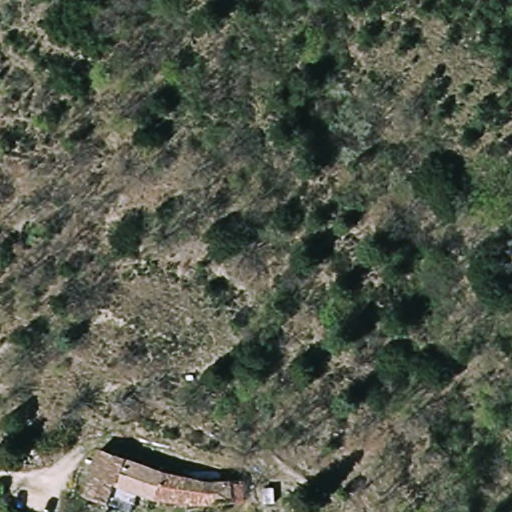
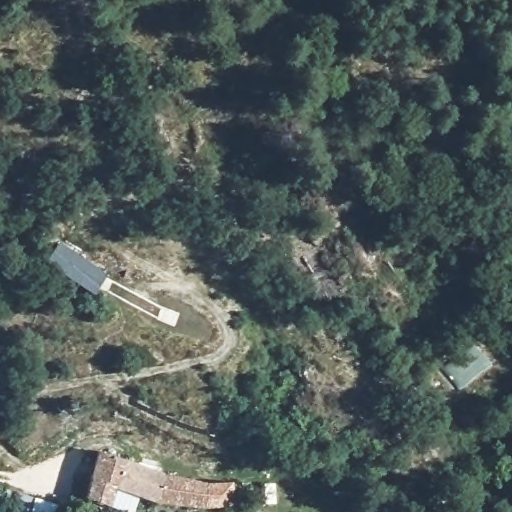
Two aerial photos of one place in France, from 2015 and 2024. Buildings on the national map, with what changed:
new [(107,274),(94,295),(46,262),(59,242),(107,274)]
unchanged [(110,505),(107,509),(84,500),(98,453),(165,476),(234,490),(233,512),(210,512),(208,511),(164,505),(139,500),(135,512),(129,512),(110,505)]

